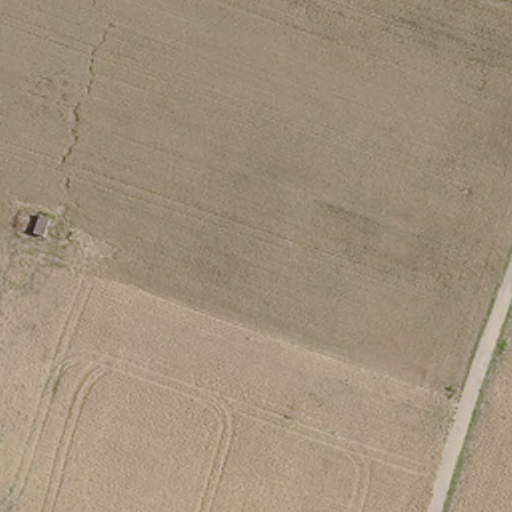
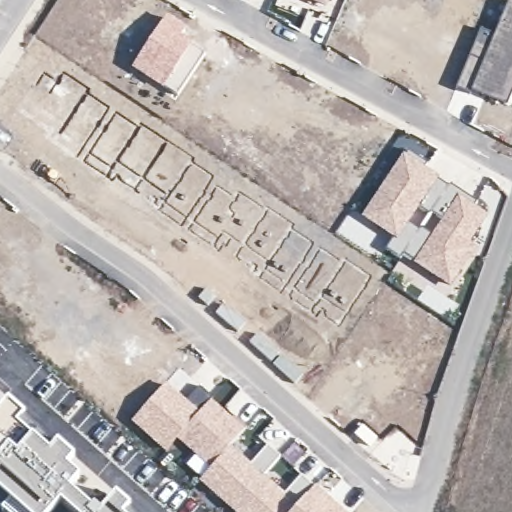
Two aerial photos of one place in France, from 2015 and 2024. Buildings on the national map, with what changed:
new [(325,8),(307,0),(328,0),(325,8)]
new [(493,35),(508,1),(512,3),(512,91),(506,105),(483,97),(456,87),(480,29),(493,35)]
new [(177,98),(162,89),(131,67),(166,16),(185,30),(182,34),(193,43),(206,54),(177,98)]
new [(458,194),(441,219),(432,211),(430,214),(420,207),(408,224),(418,230),(420,227),(431,235),(430,236),(413,262),(404,255),(401,258),(387,249),(394,239),(361,217),(403,154),(406,156),(408,152),(427,163),(424,167),(440,177),(438,180),(448,186),(451,184),(477,201),(474,205),(458,194)]
new [(430,236),(458,194),(488,214),(470,243),(479,248),(450,287),(412,263),(430,236)]
unchanged [(39,238),(29,234),(36,217),(45,221),(39,238)]
new [(166,381),(199,410),(177,441),(166,453),(130,421),(166,381)]
new [(232,419),(235,417),(248,428),(231,445),(209,467),(178,439),(199,410),(187,400),(200,386),(213,397),(211,400),(232,419)]
new [(60,507),(56,512),(3,512),(0,509),(0,405),(8,397),(25,412),(56,439),(75,459),(69,466),(83,479),(74,491),(91,507),(93,505),(99,510),(116,492),(138,512),(63,512),(64,511),(60,507)]
new [(231,445),(250,463),(267,445),(281,457),(264,476),(285,493),(300,475),(312,485),(290,512),(234,512),(198,480),(199,477),(231,445)]
new [(345,512),(290,512),(312,485),(345,512)]

